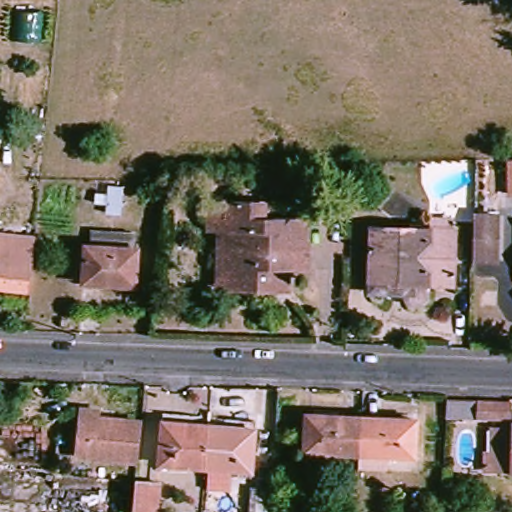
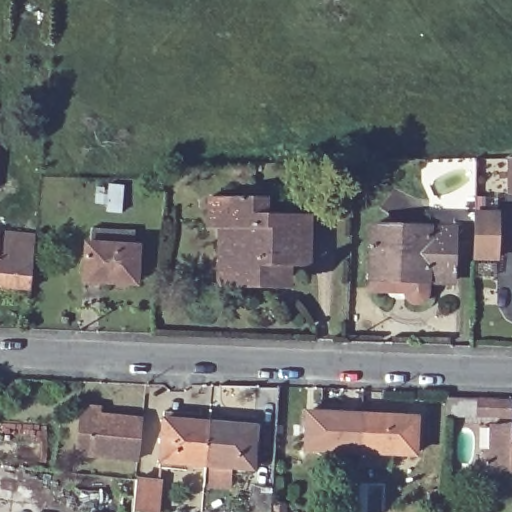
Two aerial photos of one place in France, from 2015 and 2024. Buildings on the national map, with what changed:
unchanged [(305,271),(285,271),(283,290),(234,290),(234,270),(223,270),(223,232),(212,232),(212,201),(264,201),(264,221),(305,222),(305,271)]
unchanged [(497,214),(494,259),(474,258),(475,213),(497,214)]
unchanged [(453,283),(427,282),(426,293),(424,299),(414,304),(406,301),(402,292),(367,291),(370,225),(454,229),(453,283)]
unchanged [(37,242),(32,290),(0,286),(0,238),(37,242)]
unchanged [(137,287),(84,283),(89,245),(140,250),(137,287)]
unchanged [(480,403),(512,403),(512,420),(479,420),(480,403)]
unchanged [(75,452),(80,406),(97,407),(97,416),(142,420),(136,458),(75,452)]
unchanged [(359,451),(305,448),(308,412),(362,415),(359,451)]
unchanged [(416,418),(414,455),(359,451),(362,415),(416,418)]
unchanged [(204,466),(158,462),(162,420),(208,423),(204,466)]
unchanged [(254,426),(250,470),(204,466),(208,423),(254,426)]
unchanged [(488,455),(501,455),(501,429),(512,429),(512,474),(488,474),(488,455)]
unchanged [(154,512),(131,512),(134,480),(157,482),(154,512)]
unchanged [(249,512),(250,486),(270,487),(269,512),(249,512)]

